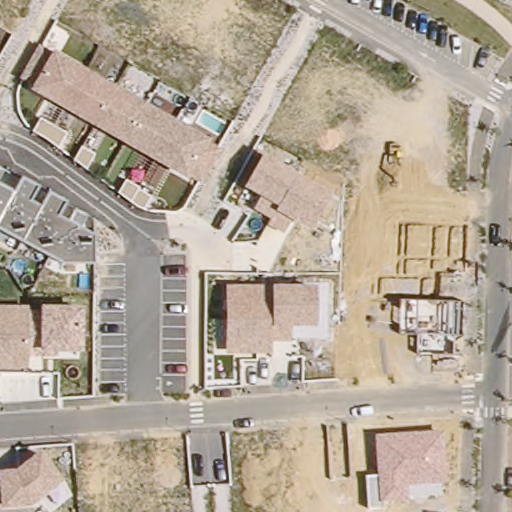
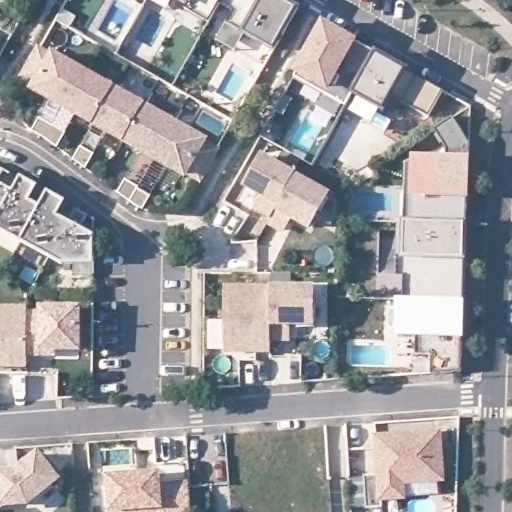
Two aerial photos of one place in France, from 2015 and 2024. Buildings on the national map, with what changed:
new [(276,52),(244,35),(236,49),(218,39),(234,8),(221,2),(209,22),(185,9),(187,5),(178,0),(292,0),(300,5),(276,52)]
new [(319,108),(327,94),(294,76),(324,23),(376,52),(353,93),(346,106),(338,120),(319,108)]
unchanged [(222,145),(203,181),(188,173),(185,178),(30,89),(32,84),(20,79),(39,44),(222,145)]
new [(429,117),(401,101),(392,96),(384,110),(353,93),(376,52),(400,65),(407,70),(417,75),(444,90),(429,117)]
new [(470,142),(465,299),(405,298),(404,276),(397,275),(399,221),(404,221),(405,162),(412,163),(412,155),(451,155),(436,128),(454,117),(470,142)]
unchanged [(58,148),(45,139),(32,132),(40,118),(53,125),(67,133),(58,148)]
unchanged [(334,192),(312,231),(292,219),(283,234),(267,224),(270,219),(251,210),(260,195),(243,186),(261,151),(334,192)]
unchanged [(6,170),(0,179),(0,167),(6,170)]
unchanged [(14,190),(22,177),(40,186),(32,199),(42,205),(50,192),(68,201),(61,215),(69,219),(77,207),(89,214),(82,227),(94,234),(95,266),(60,264),(0,231),(0,183),(14,190)]
new [(143,210),(137,207),(130,202),(118,193),(125,179),(139,186),(138,188),(152,196),(143,210)]
unchanged [(292,327),(292,341),(270,341),(270,355),(225,355),(225,285),(271,285),(271,272),(291,273),(291,285),(315,284),(315,327),(292,327)]
unchanged [(465,299),(464,337),(453,336),(453,355),(414,354),(416,333),(398,332),(399,298),(465,299)]
unchanged [(82,303),(83,351),(58,351),(58,357),(28,358),(28,369),(0,370),(0,303),(82,303)]
unchanged [(450,481),(408,485),(409,501),(384,502),(384,510),(367,511),(365,475),(377,474),(374,434),(445,429),(450,481)]
unchanged [(35,504),(0,507),(0,470),(17,468),(38,449),(66,477),(35,504)]
new [(110,477),(147,475),(159,474),(159,480),(160,486),(189,484),(192,512),(112,512),(112,510),(110,477)]

